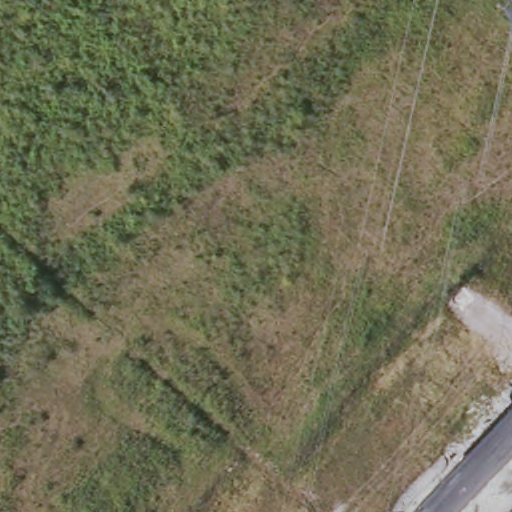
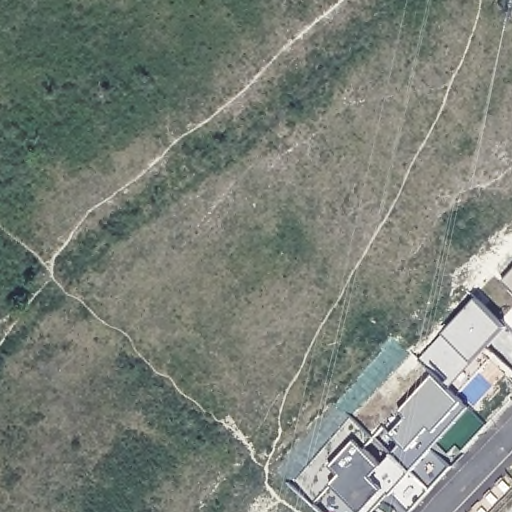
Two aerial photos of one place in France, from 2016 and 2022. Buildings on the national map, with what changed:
new [(500,283),(512,269),(512,293),(500,283)]
new [(473,362),(447,389),(431,374),(418,358),(442,334),(475,299),(499,322),(505,328),(473,362)]
new [(512,308),(512,334),(499,322),(512,308)]
new [(397,412),(431,374),(462,403),(468,409),(430,451),(450,468),(428,491),(390,455),(400,444),(389,435),(404,419),(397,412)]
new [(350,440),(326,467),(336,477),(328,486),(311,503),(290,484),(348,418),(370,439),(360,449),(350,440)]
new [(328,486),(336,477),(326,467),(350,440),(380,467),(390,455),(428,491),(409,512),(406,512),(388,496),(373,512),(357,512),(328,486)]

